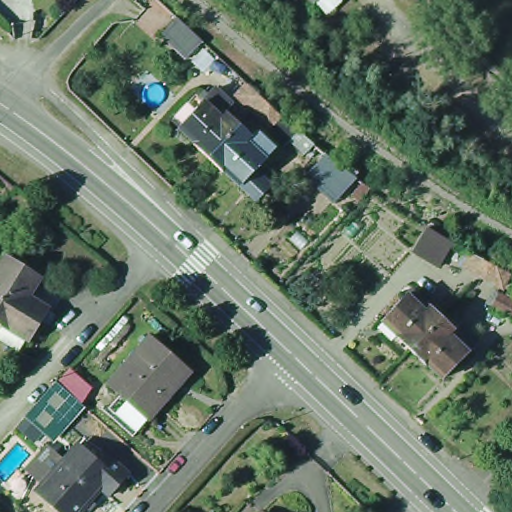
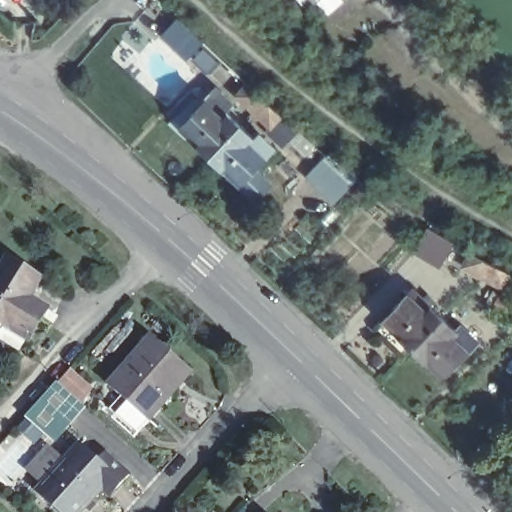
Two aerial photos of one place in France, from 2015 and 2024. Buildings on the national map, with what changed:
unchanged [(311,0),(324,0),(317,7),(311,0)]
unchanged [(180,49),(154,26),(169,10),(195,33),(180,49)]
unchanged [(270,120),(253,105),(238,93),(250,80),(265,94),(282,109),(270,120)]
unchanged [(198,164),(185,150),(187,148),(172,133),(183,120),(182,118),(197,103),(208,92),(225,108),(220,113),(233,126),(198,164)]
unchanged [(243,203),(228,189),(216,177),(213,179),(198,164),(233,126),(247,139),(252,134),(265,146),(255,158),(258,160),(243,174),(258,188),(243,203)]
unchanged [(330,204),(305,179),(327,158),(352,183),(330,204)]
unchanged [(432,268),(408,252),(425,229),(449,244),(432,268)]
unchanged [(0,324),(5,314),(0,311),(0,258),(7,247),(41,267),(30,286),(48,297),(30,328),(22,341),(0,328),(0,324)]
unchanged [(501,276),(493,289),(476,282),(457,272),(465,259),(486,269),(501,276)]
unchanged [(404,353),(388,338),(392,334),(378,319),(387,310),(385,309),(401,294),(403,296),(407,292),(421,304),(436,319),(404,353)]
unchanged [(512,306),(512,314),(509,320),(485,308),(492,295),(512,306)]
unchanged [(43,346),(32,335),(52,314),(63,324),(43,346)]
unchanged [(447,368),(446,367),(436,377),(422,363),(418,367),(404,353),(436,319),(453,334),(457,330),(464,338),(460,341),(467,348),(447,368)]
unchanged [(105,383),(149,335),(176,360),(188,372),(170,392),(145,419),(105,383)]
unchanged [(50,442),(23,418),(53,384),(55,386),(68,372),(90,391),(77,405),(80,409),(50,442)]
unchanged [(77,447),(96,464),(103,456),(127,478),(107,499),(97,491),(79,512),(54,512),(35,495),(77,447)]
unchanged [(260,510),(262,512),(258,512),(260,510)]

